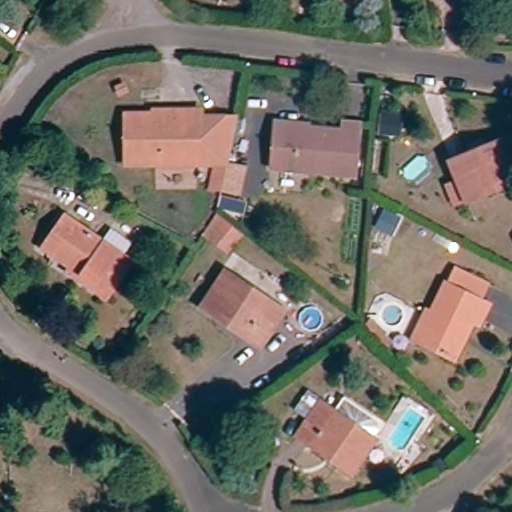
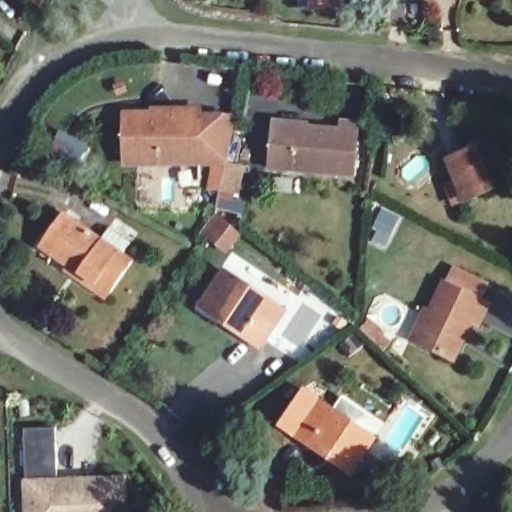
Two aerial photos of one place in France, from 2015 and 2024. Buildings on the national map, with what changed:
unchanged [(247,197),(228,193),(213,190),(217,168),(125,167),(124,116),(242,118),(232,169),(252,172),(247,197)]
unchanged [(355,174),(276,169),(277,125),(357,131),(355,174)]
unchanged [(512,142),(512,190),(462,206),(459,194),(512,178),(502,145),(512,142)]
unchanged [(512,178),(459,194),(448,160),(502,145),(512,178)]
unchanged [(242,230),(221,255),(204,241),(224,216),(242,230)]
unchanged [(71,269),(47,257),(65,224),(105,246),(112,234),(130,243),(124,256),(139,264),(114,307),(93,296),(66,281),(71,269)]
unchanged [(199,311),(225,271),(271,302),(285,311),(275,326),(260,350),(243,339),(216,322),(199,311)]
unchanged [(427,323),(433,326),(452,287),(460,272),(494,288),(487,304),(497,309),(487,328),(477,325),(457,366),(431,353),(415,346),(427,323)]
unchanged [(298,445),(285,436),(297,417),(305,404),(333,422),(342,408),(377,430),(378,437),(372,446),(375,447),(355,481),(338,470),(313,455),(298,445)]
new [(57,429),(58,479),(129,476),(129,512),(25,512),(24,479),(27,479),(26,430),(57,429)]

